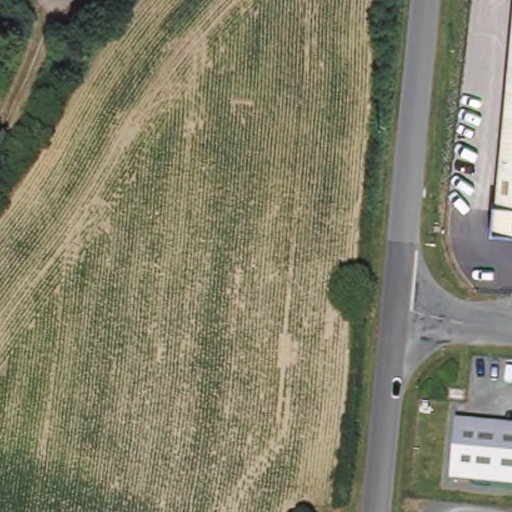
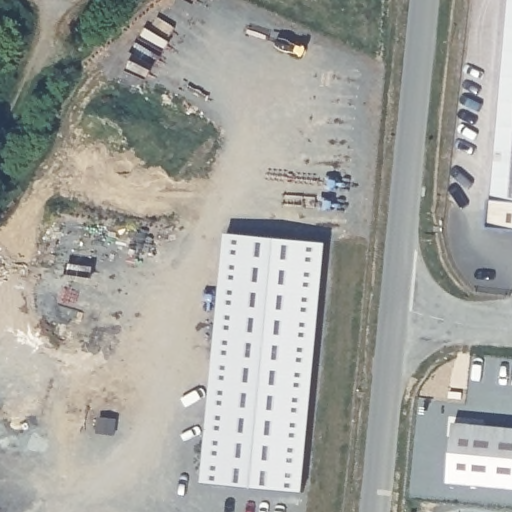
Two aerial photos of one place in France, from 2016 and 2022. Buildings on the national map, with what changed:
unchanged [(492,224),(493,199),(499,200),(512,5),(512,225),(492,224)]
new [(230,232),(329,241),(306,491),(205,482),(230,232)]
unchanged [(453,427),(512,433),(512,494),(447,487),(453,427)]

